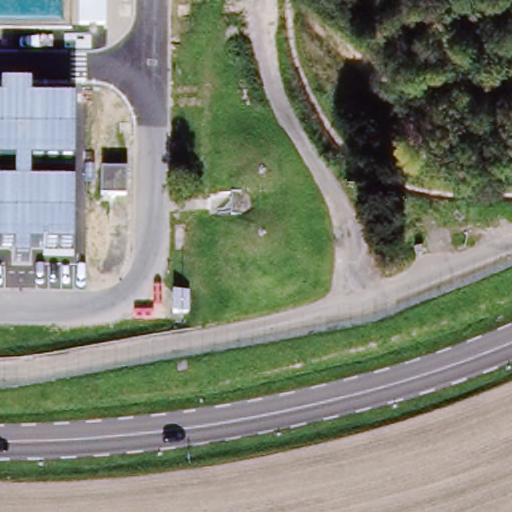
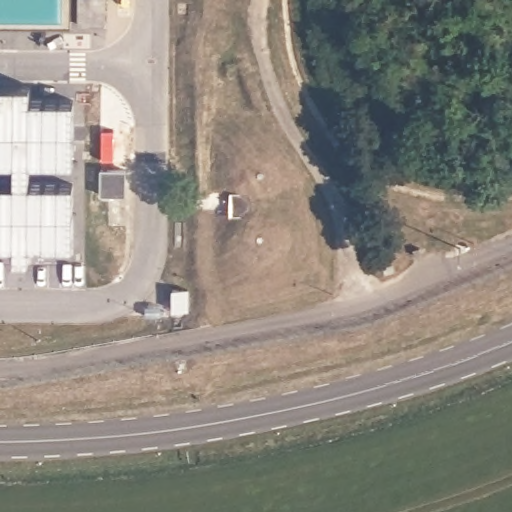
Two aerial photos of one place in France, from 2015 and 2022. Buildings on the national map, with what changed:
unchanged [(2,85),(31,85),(30,97),(75,99),(74,162),(30,161),(29,184),(72,182),(72,246),(30,245),(29,261),(16,261),(16,246),(0,246),(0,181),(15,181),(15,161),(0,161),(0,97),(2,97),(2,85)]
unchanged [(127,165),(127,190),(101,188),(101,163),(127,165)]
unchanged [(190,286),(192,311),(170,312),(173,288),(190,286)]

